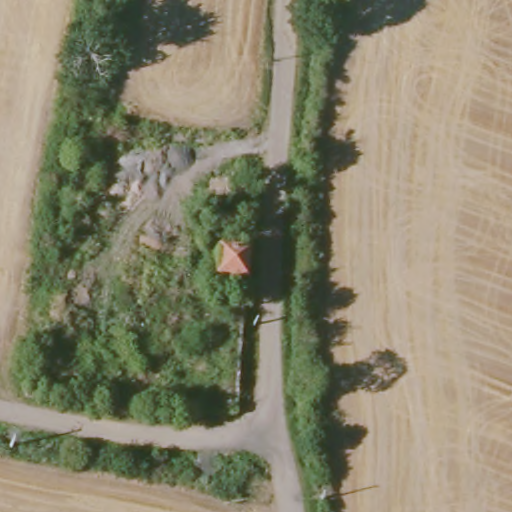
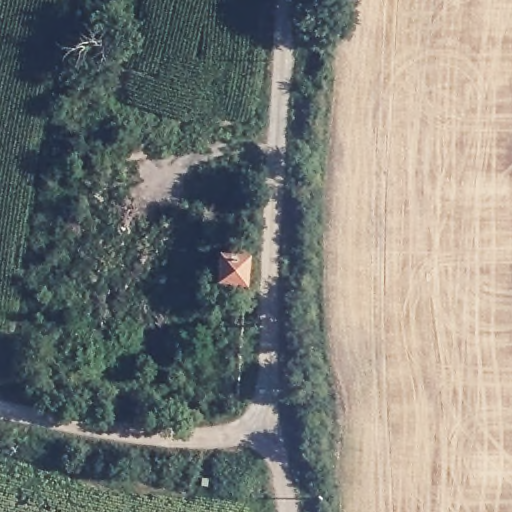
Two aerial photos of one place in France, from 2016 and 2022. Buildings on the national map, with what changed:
unchanged [(240,242),(245,247),(247,254),(245,281),(219,278),(222,251),(229,252),(229,248),(230,244),(235,241),(240,242)]

